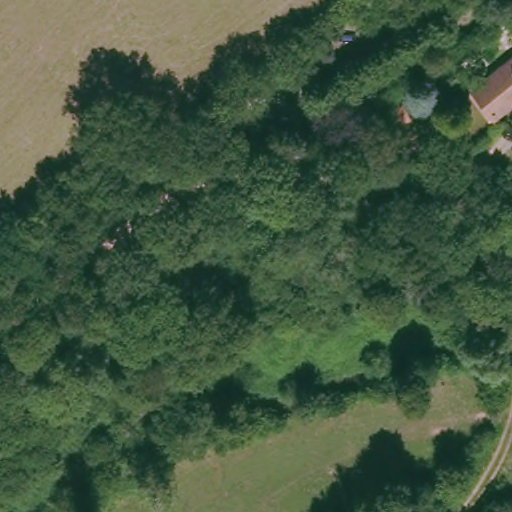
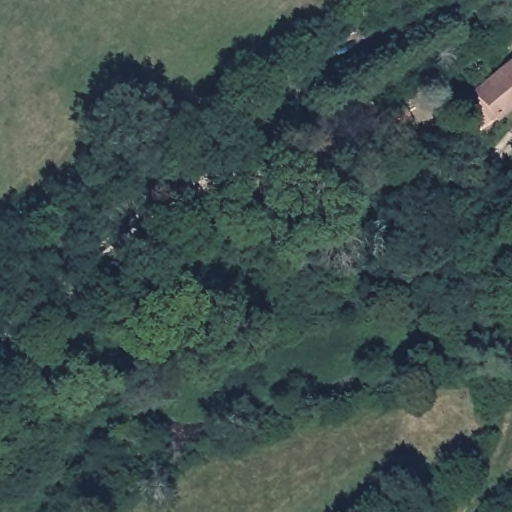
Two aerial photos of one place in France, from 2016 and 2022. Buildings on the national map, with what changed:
unchanged [(512,50),(512,114),(502,122),(472,88),(512,50)]

